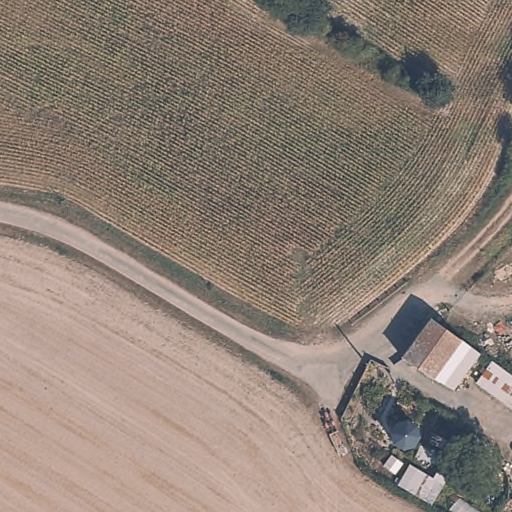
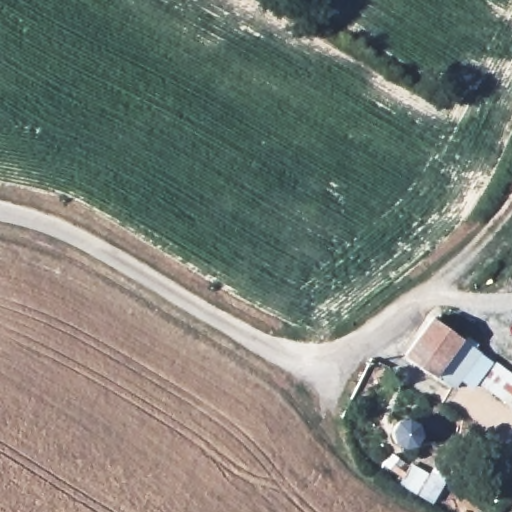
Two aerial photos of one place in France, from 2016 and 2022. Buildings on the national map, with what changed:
unchanged [(454,391),(403,355),(431,317),(481,354),(454,391)]
unchanged [(392,419),(393,417),(395,415),(397,413),(399,412),(401,411),(403,410),(406,409),(409,409),(411,410),(414,411),(416,412),(418,414),(420,415),(421,417),(422,420),(423,422),(424,425),(423,427),(423,430),(422,432),(421,435),(419,437),(418,438),(416,440),(413,441),(411,442),(408,442),(406,442),(403,442),(401,441),(398,440),(396,438),(394,436),(393,434),(392,432),(391,429),(391,427),(391,424),(391,422),(392,419)]

